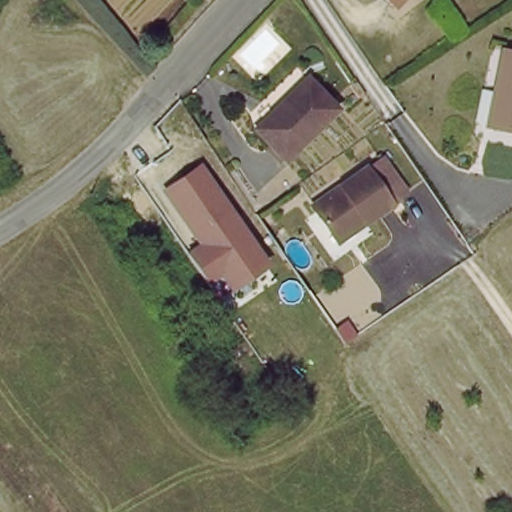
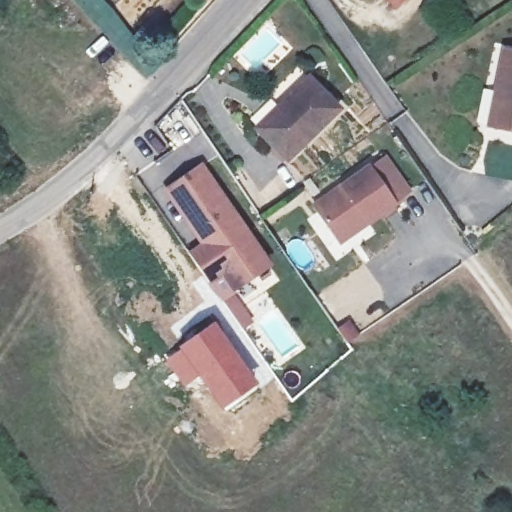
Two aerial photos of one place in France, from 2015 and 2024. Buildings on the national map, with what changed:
unchanged [(394,7),(385,0),(400,0),(394,7)]
unchanged [(498,86),(503,51),(512,53),(512,132),(500,130),(506,88),(498,86)]
unchanged [(307,76),(338,108),(284,159),(253,127),(307,76)]
unchanged [(384,156),(411,194),(343,243),(315,205),(384,156)]
unchanged [(204,161),(275,266),(232,296),(222,279),(212,286),(188,250),(200,243),(162,188),(204,161)]
new [(185,340),(214,320),(257,383),(220,409),(198,377),(184,387),(164,359),(185,340)]

